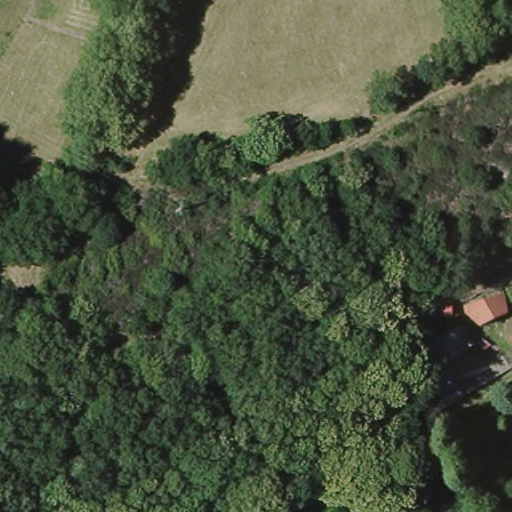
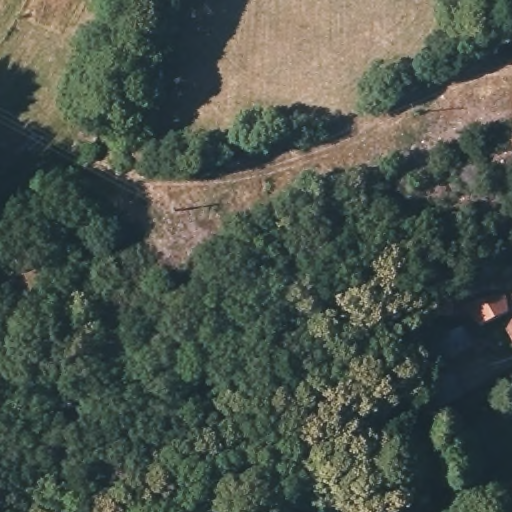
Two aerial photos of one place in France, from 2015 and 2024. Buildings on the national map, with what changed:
unchanged [(468,292),(495,285),(505,308),(482,314),(477,315),(473,312),(467,307),(452,305),(420,304),(417,304),(418,278),(452,279),(452,289),(464,289),(468,292)]
unchanged [(512,317),(512,333),(508,323),(512,317)]
unchanged [(408,390),(378,339),(403,336),(416,333),(420,333),(427,331),(430,331),(436,328),(455,321),(471,335),(456,344),(440,354),(447,371),(408,390)]

